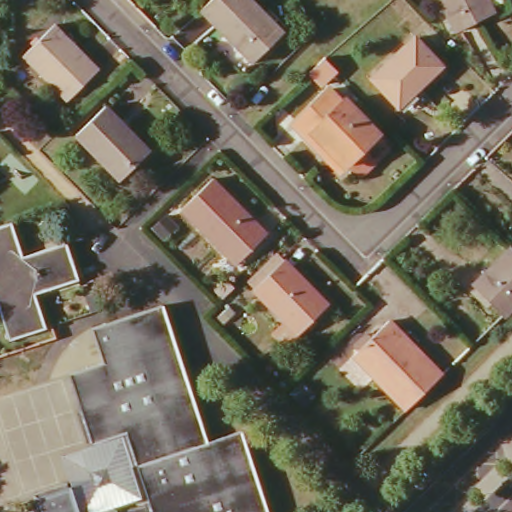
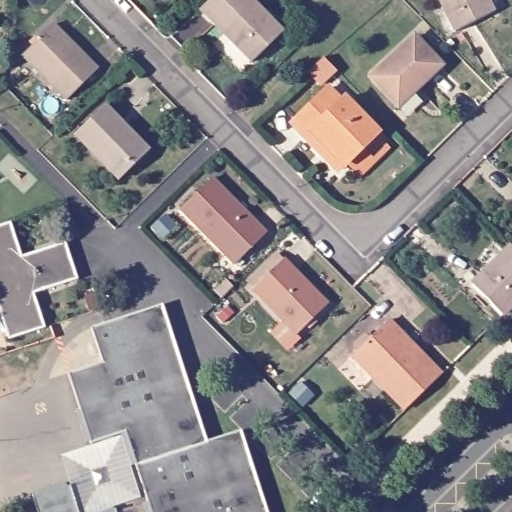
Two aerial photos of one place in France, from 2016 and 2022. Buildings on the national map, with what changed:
unchanged [(211,0),(245,0),(280,34),(251,65),(198,13),(211,0)]
unchanged [(438,0),(483,0),(491,16),(456,33),(438,0)]
unchanged [(19,60),(52,26),(94,69),(61,102),(19,60)]
unchanged [(412,35),(439,64),(399,102),(372,74),(412,35)]
unchanged [(316,143),(291,117),(324,84),(334,94),(340,89),(375,126),(373,128),(386,141),(361,165),(349,151),(342,158),(336,163),(316,143)]
unchanged [(73,139),(103,110),(146,155),(116,183),(73,139)]
unchanged [(276,112),(286,126),(269,140),(259,129),(276,112)]
unchanged [(180,212),(211,182),(264,237),(234,266),(180,212)]
unchanged [(0,227),(7,225),(18,259),(61,246),(66,263),(71,281),(29,295),(38,327),(4,337),(0,323),(0,227)]
unchanged [(507,248),(512,253),(512,297),(492,317),(468,289),(507,248)]
unchanged [(280,262),(326,306),(297,335),(251,290),(280,262)]
unchanged [(88,444),(65,372),(99,362),(89,327),(158,306),(203,440),(238,428),(265,512),(148,512),(142,494),(122,433),(88,444)]
unchanged [(354,357),(386,325),(432,375),(399,407),(354,357)]
unchanged [(87,512),(80,512),(70,482),(60,452),(88,444),(122,433),(142,494),(106,506),(87,512)]
unchanged [(70,482),(80,512),(33,512),(28,496),(70,482)]
unchanged [(109,512),(87,512),(106,506),(109,512)]

